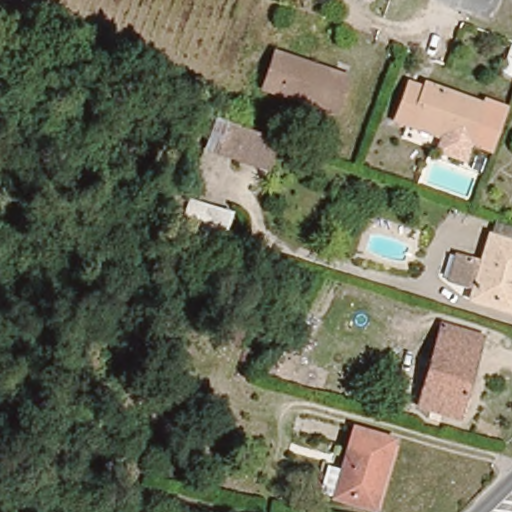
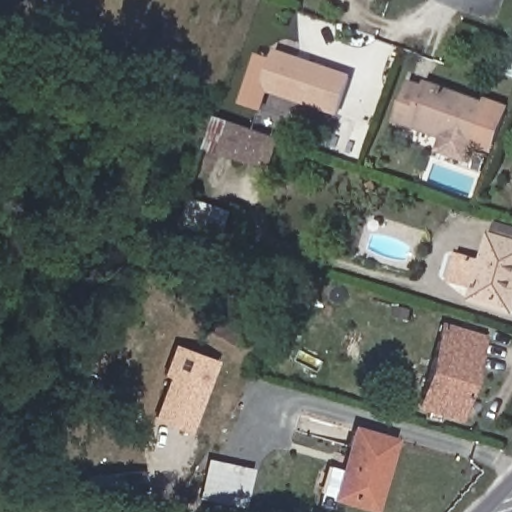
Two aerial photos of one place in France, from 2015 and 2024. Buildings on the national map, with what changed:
unchanged [(336,108),(263,83),(276,47),(348,71),(336,108)]
unchanged [(437,83),(495,104),(482,144),(424,123),(422,130),(406,125),(418,85),(434,90),(437,83)]
unchanged [(275,168),(226,151),(213,147),(224,116),(239,121),(287,138),(275,168)]
unchanged [(475,284),(479,272),(451,263),(458,238),(485,247),(495,223),(512,229),(512,297),(475,284)]
unchanged [(460,418),(417,403),(442,325),(485,339),(460,418)]
new [(174,344),(220,361),(191,434),(152,419),(170,378),(162,375),(174,344)]
unchanged [(377,506),(332,495),(353,424),(398,438),(377,506)]
new [(246,507),(199,498),(206,459),(253,468),(246,507)]

